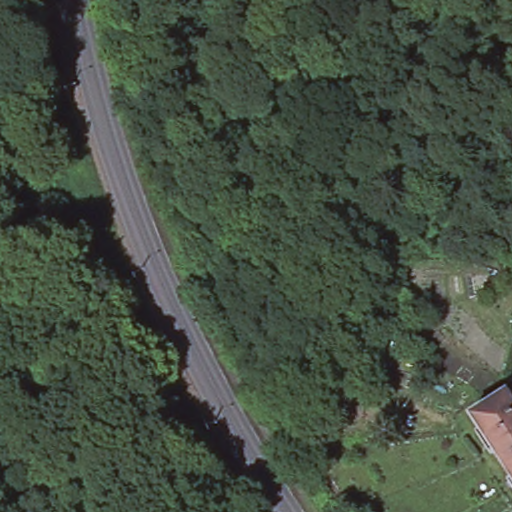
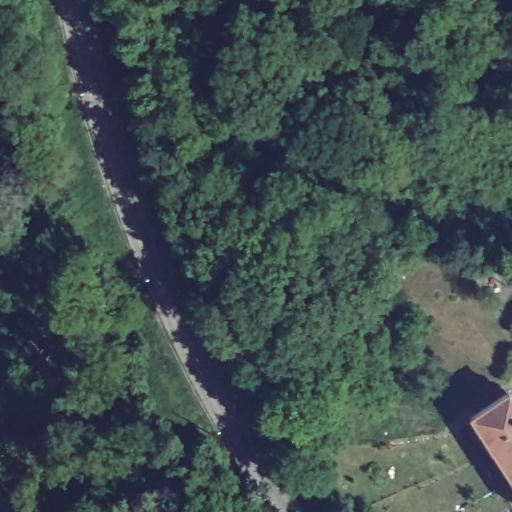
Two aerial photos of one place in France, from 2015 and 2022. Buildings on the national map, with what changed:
unchanged [(512,403),(512,484),(463,412),(502,387),(512,403)]

